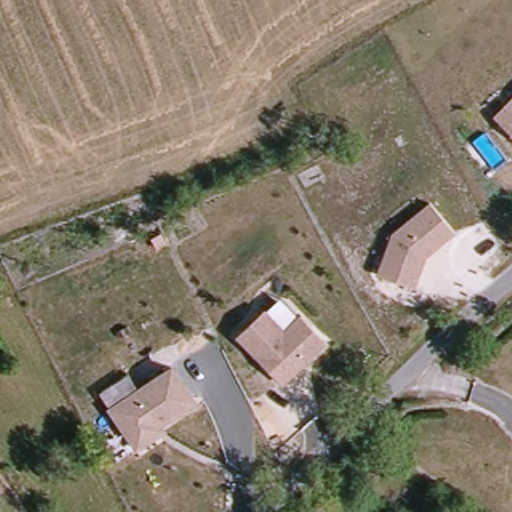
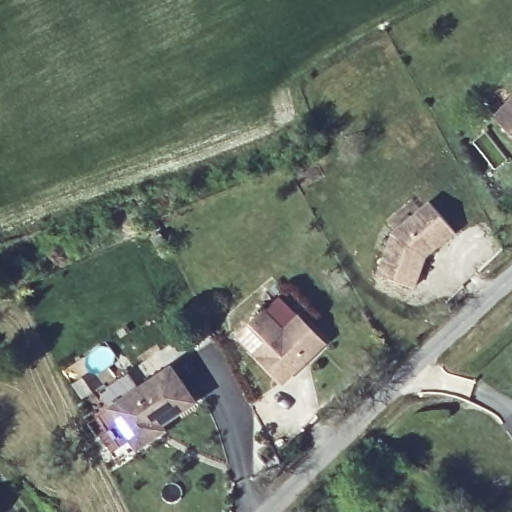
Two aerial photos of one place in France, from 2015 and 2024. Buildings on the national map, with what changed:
unchanged [(512,98),(512,132),(495,116),(512,98)]
unchanged [(455,230),(426,253),(414,285),(378,271),(393,229),(430,200),(455,230)]
unchanged [(284,382),(241,336),(268,309),(285,328),(301,315),(327,342),(312,357),(297,371),(284,382)]
unchanged [(157,437),(137,449),(111,407),(101,391),(131,372),(141,388),(174,368),(196,404),(161,427),(165,432),(157,437)]

